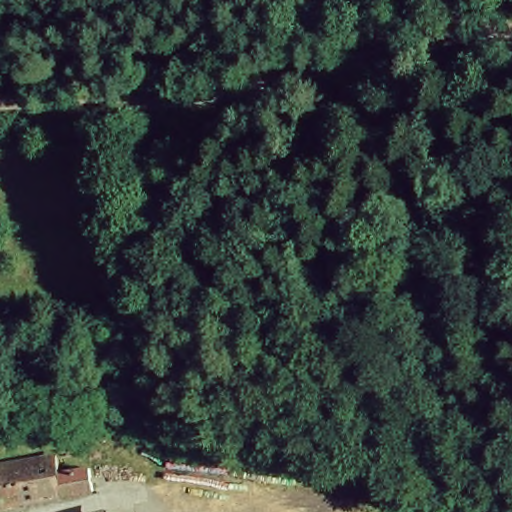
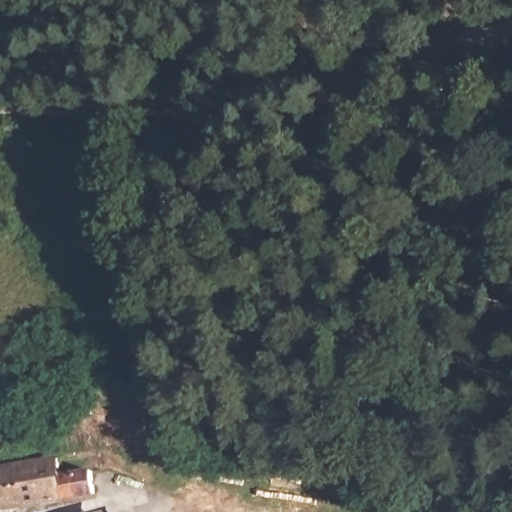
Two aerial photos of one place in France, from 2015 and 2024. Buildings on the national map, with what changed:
unchanged [(1,509),(0,504),(0,467),(51,457),(53,456),(58,458),(61,475),(92,470),(96,491),(1,509)]

